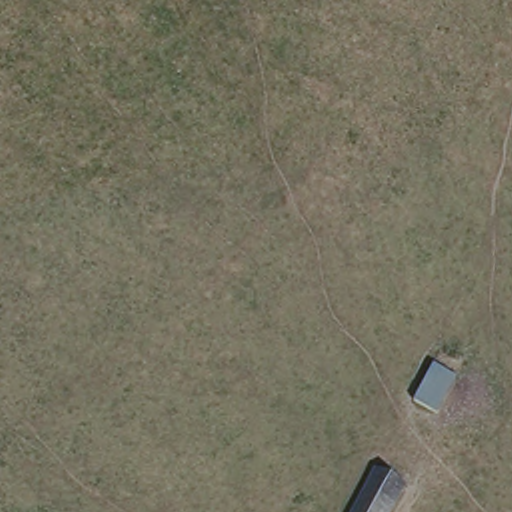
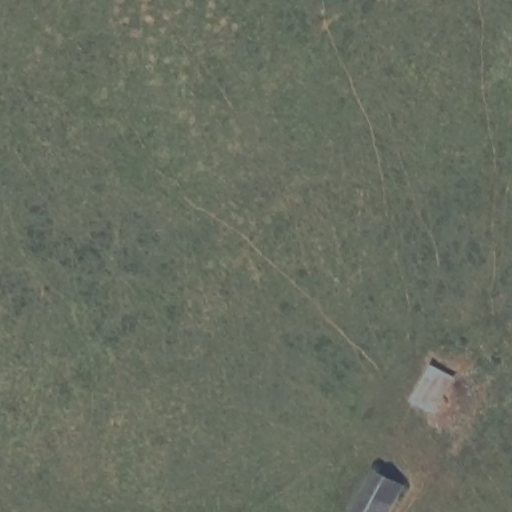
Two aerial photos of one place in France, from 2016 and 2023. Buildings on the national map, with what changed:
unchanged [(458,371),(437,412),(409,400),(431,356),(458,371)]
unchanged [(354,512),(380,467),(405,481),(389,512),(354,512)]

